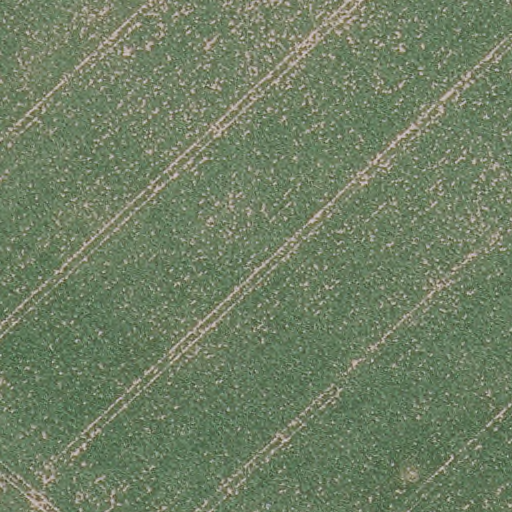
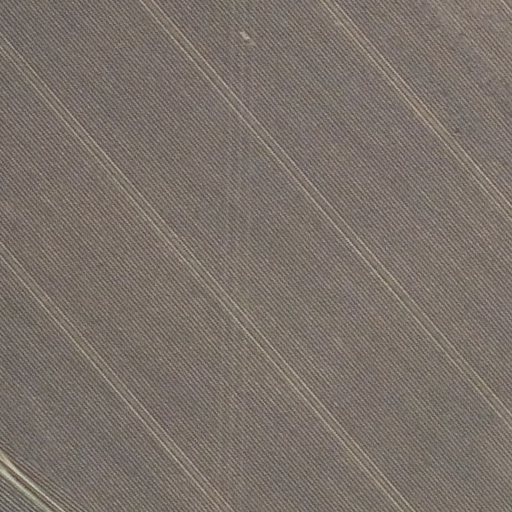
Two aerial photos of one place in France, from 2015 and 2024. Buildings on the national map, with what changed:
[]

